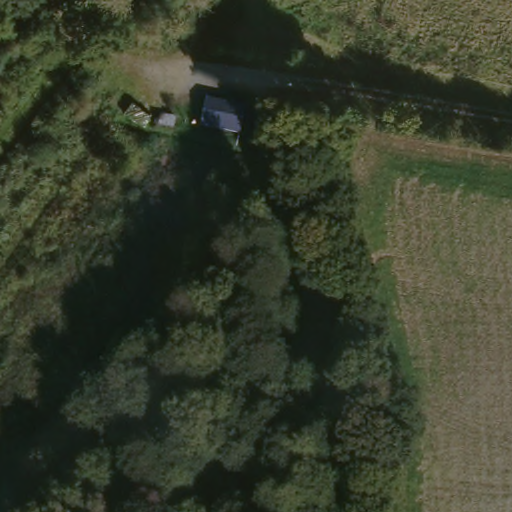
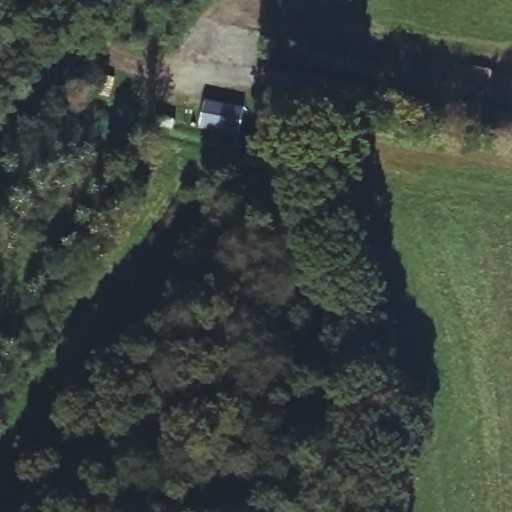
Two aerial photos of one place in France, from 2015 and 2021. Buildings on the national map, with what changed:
unchanged [(245,108),(239,136),(198,128),(204,101),(245,108)]

